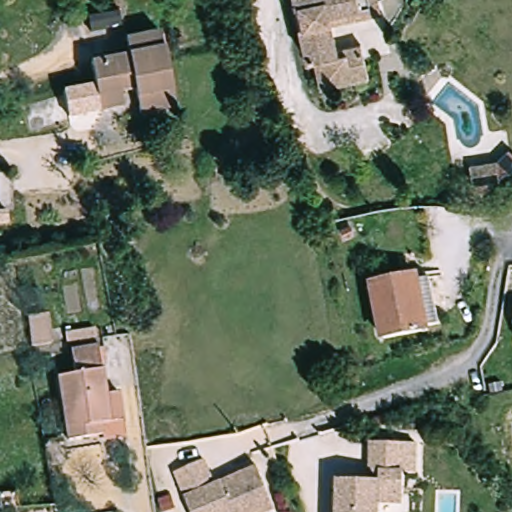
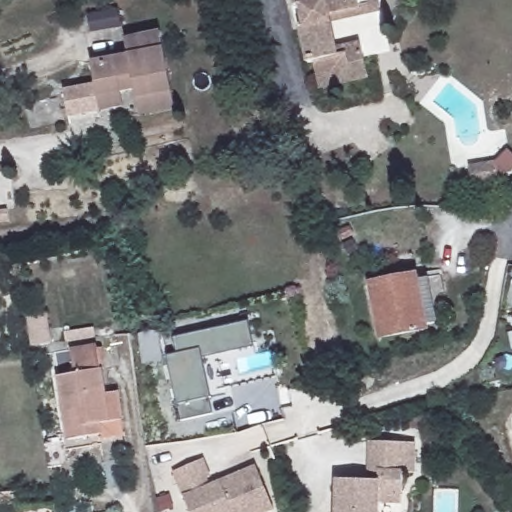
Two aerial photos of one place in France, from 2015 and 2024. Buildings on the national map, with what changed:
unchanged [(373,74),(326,84),(321,59),(311,61),(303,26),(298,28),(291,1),(296,0),(384,0),(385,5),(334,16),(341,46),(366,41),(367,49),(373,74)]
unchanged [(100,104),(98,89),(91,56),(129,49),(126,32),(161,26),(176,101),(139,108),(135,82),(123,84),(125,99),(100,104)]
unchanged [(473,165),(500,160),(512,149),(512,171),(503,172),(504,177),(476,182),(473,165)]
new [(7,218),(0,219),(0,206),(6,206),(7,218)]
unchanged [(414,272),(416,278),(429,276),(439,319),(425,322),(426,326),(383,335),(371,282),(414,272)]
unchanged [(51,341),(30,344),(25,314),(46,311),(51,341)]
new [(212,412),(179,419),(166,353),(176,351),(173,335),(242,321),(241,314),(247,313),(248,320),(253,344),(200,355),(206,380),(208,395),(212,412)]
unchanged [(64,344),(63,333),(93,328),(94,338),(64,344)]
unchanged [(69,439),(58,367),(71,365),(68,350),(96,345),(104,394),(116,392),(120,420),(123,435),(103,438),(101,433),(87,436),(69,439)]
unchanged [(379,512),(335,512),(336,479),(367,480),(368,441),(394,441),(417,442),(416,470),(403,470),(402,505),(379,504),(379,512)]
unchanged [(270,512),(189,512),(173,471),(203,458),(211,477),(208,478),(211,483),(256,465),(274,510),(270,512)]

